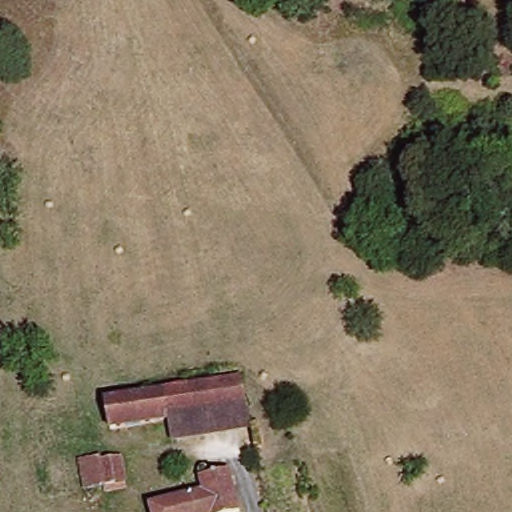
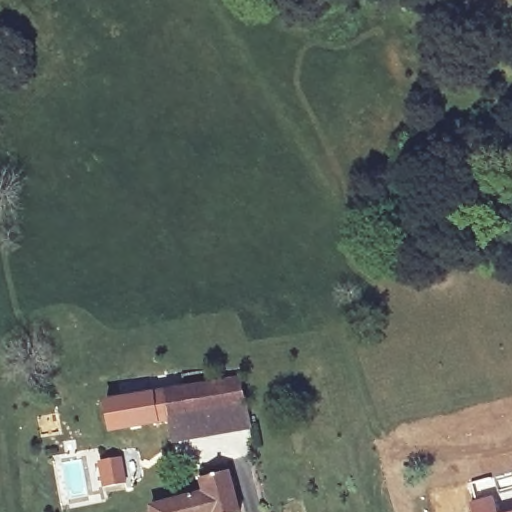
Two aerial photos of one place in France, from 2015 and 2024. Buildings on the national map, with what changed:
unchanged [(235,371),(243,404),(167,421),(112,433),(106,401),(235,371)]
unchanged [(247,423),(172,441),(167,421),(243,404),(247,423)]
unchanged [(91,465),(128,462),(130,490),(99,492),(89,494),(85,466),(91,465)]
unchanged [(202,498),(196,475),(222,467),(235,511),(233,512),(154,512),(202,498)]
new [(498,512),(472,512),(469,501),(494,495),(498,512)]
new [(512,509),(512,512),(502,512),(512,509)]

